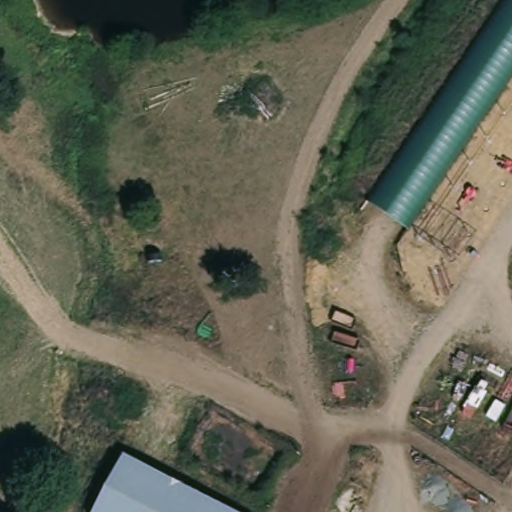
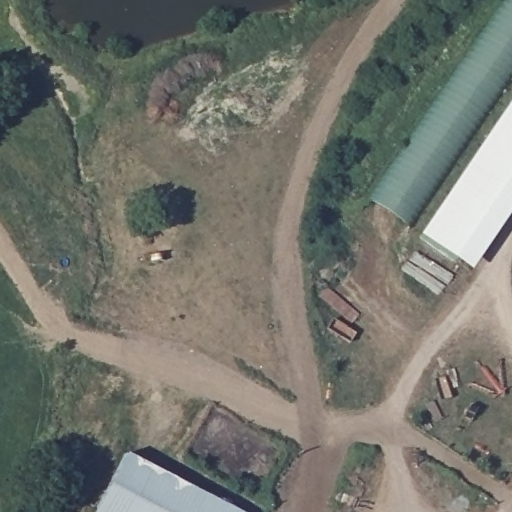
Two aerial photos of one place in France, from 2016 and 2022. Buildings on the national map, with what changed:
unchanged [(508,0),(512,0),(512,68),(405,226),(370,201),(508,0)]
new [(512,108),(512,217),(469,281),(419,247),(512,108)]
unchanged [(121,452),(229,512),(91,512),(121,452)]

